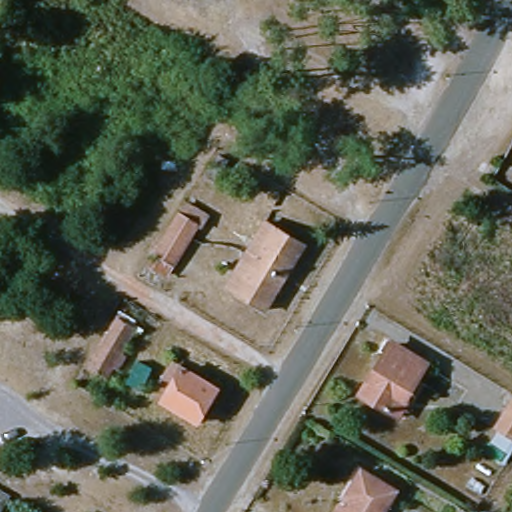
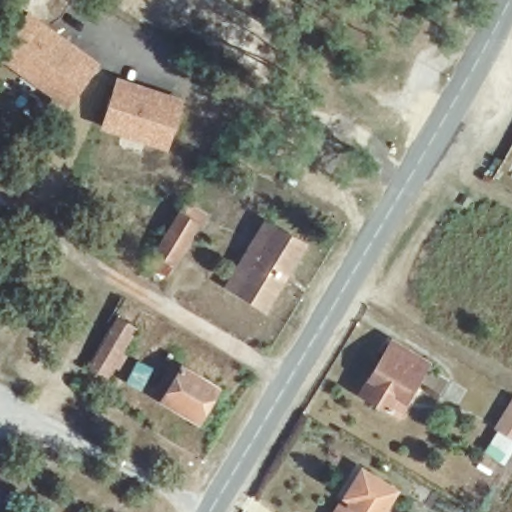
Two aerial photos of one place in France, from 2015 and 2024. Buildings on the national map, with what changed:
new [(44,24),(96,61),(93,65),(69,99),(17,62),(42,28),(44,24)]
new [(120,81),(181,99),(180,104),(169,144),(107,127),(118,86),(120,81)]
unchanged [(149,249),(173,212),(196,228),(174,267),(149,249)]
unchanged [(223,289),(262,220),(299,244),(262,312),(223,289)]
unchanged [(151,314),(138,336),(131,332),(117,353),(123,357),(115,373),(110,369),(104,381),(79,366),(112,315),(121,298),(151,314)]
unchanged [(423,366),(396,417),(355,392),(382,342),(423,366)]
unchanged [(196,426),(153,399),(174,366),(216,392),(196,426)]
unchanged [(485,437),(503,402),(512,408),(512,446),(507,454),(485,437)]
unchanged [(400,493),(388,512),(329,512),(355,467),(400,493)]
unchanged [(0,506),(0,488),(8,493),(0,506)]

